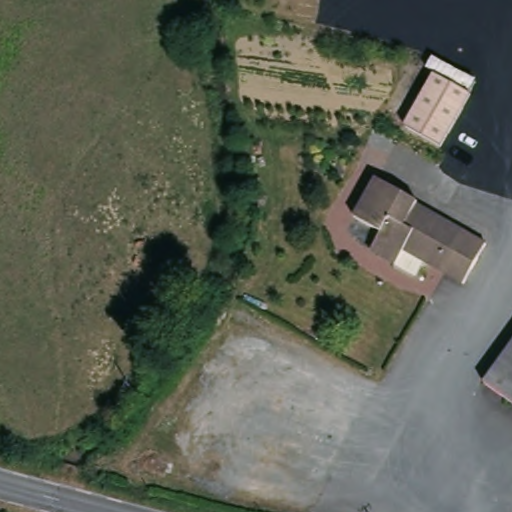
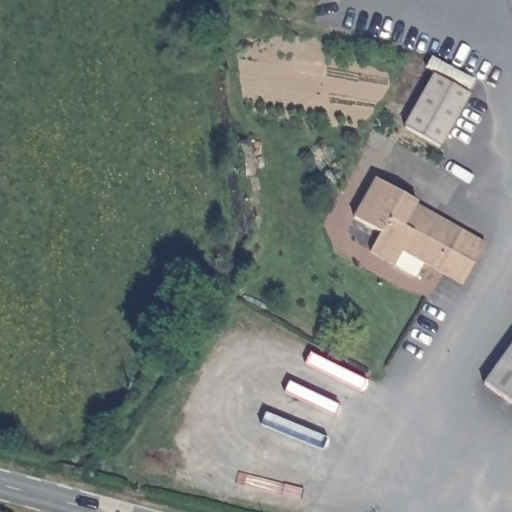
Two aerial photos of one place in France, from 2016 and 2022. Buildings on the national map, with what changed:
unchanged [(404,126),(434,75),(470,95),(441,146),(404,126)]
unchanged [(397,266),(375,251),(384,235),(354,216),(376,175),(469,229),(493,242),(465,287),(433,266),(421,282),(397,266)]
unchanged [(512,351),(512,399),(489,382),(512,351)]

